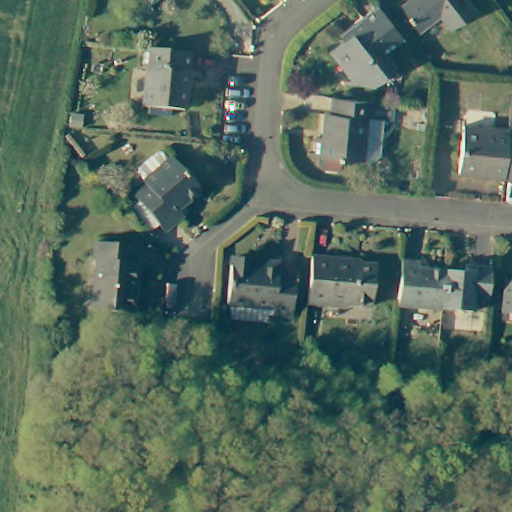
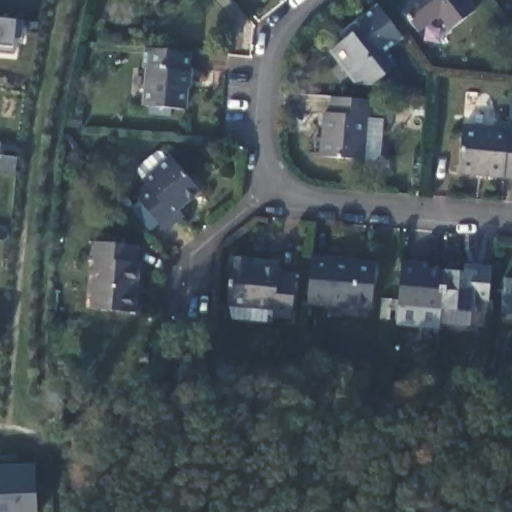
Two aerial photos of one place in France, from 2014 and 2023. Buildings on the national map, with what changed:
unchanged [(148,0),(160,0),(153,6),(148,0)]
unchanged [(450,27),(440,15),(417,32),(398,9),(410,0),(468,0),(475,9),(450,27)]
unchanged [(383,52),(394,67),(371,83),(348,80),(329,52),(348,37),(344,30),(374,7),(399,40),(383,52)]
new [(15,40),(13,56),(0,54),(0,19),(13,20),(23,21),(23,40),(15,40)]
unchanged [(190,55),(185,112),(145,107),(149,70),(144,69),(145,51),(190,55)]
unchanged [(374,124),(365,122),(361,163),(311,159),(313,142),(323,142),(326,117),(333,117),(335,101),(376,105),(374,124)]
unchanged [(457,177),(462,131),(507,134),(509,127),(512,127),(512,181),(457,177)]
unchanged [(135,197),(146,188),(143,184),(134,174),(158,155),(163,155),(169,162),(172,160),(199,191),(177,210),(183,217),(165,232),(159,226),(148,236),(133,219),(129,214),(141,204),(135,197)]
unchanged [(133,265),(138,266),(133,315),(89,312),(93,263),(89,263),(91,245),(134,248),(133,265)]
unchanged [(269,321),(232,318),(229,303),(228,303),(233,256),(281,261),(281,272),(295,273),(292,313),(274,313),(269,312),(269,321)]
unchanged [(369,307),(348,306),(348,310),(304,306),(309,258),(331,261),(331,263),(373,267),(369,307)]
unchanged [(439,312),(395,309),(399,265),(417,267),(417,272),(443,274),(439,312)]
unchanged [(488,306),(469,305),(468,315),(439,312),(443,274),(463,276),(464,271),(490,272),(488,306)]
unchanged [(501,317),(504,285),(512,285),(512,318),(501,317)]
new [(0,512),(0,465),(33,463),(37,512),(0,512)]

